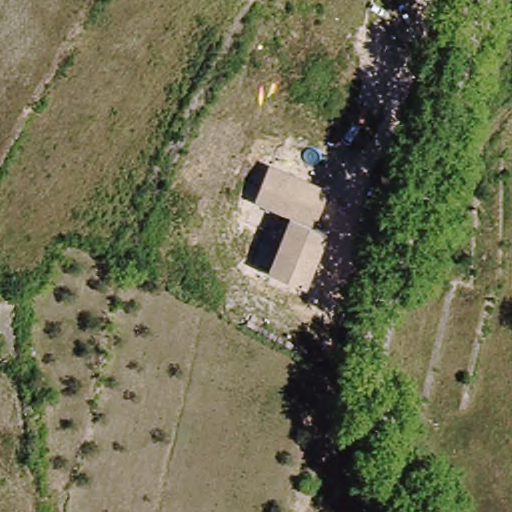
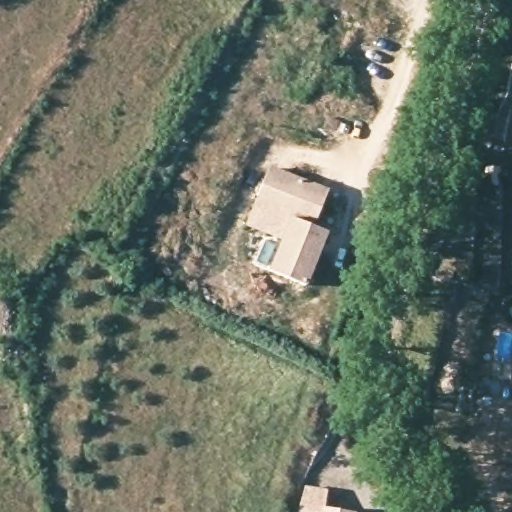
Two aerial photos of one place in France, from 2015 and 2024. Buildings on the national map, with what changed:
unchanged [(269,271),(292,218),(256,204),(270,168),(330,190),(313,228),(329,234),(308,287),(269,271)]
new [(306,486),(327,490),(326,503),(357,508),(357,512),(298,512),(306,486)]

